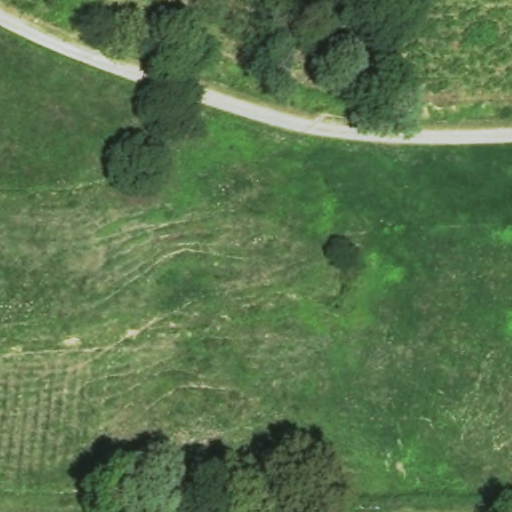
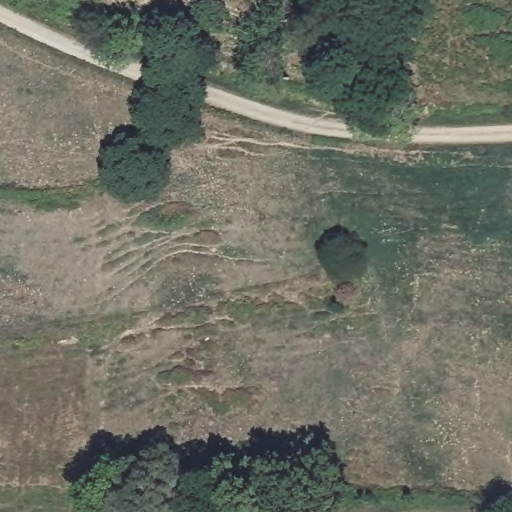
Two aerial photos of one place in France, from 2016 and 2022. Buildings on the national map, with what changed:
unchanged [(259,510),(283,509),(286,499),(341,494),(343,512),(259,512),(259,510)]

